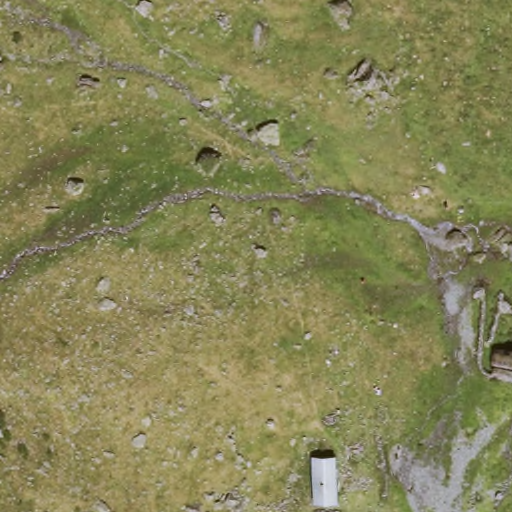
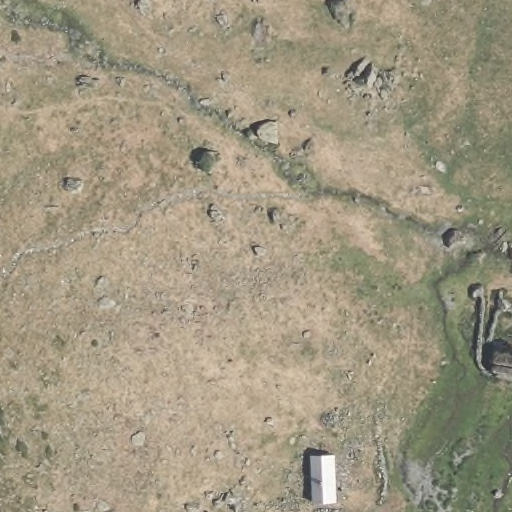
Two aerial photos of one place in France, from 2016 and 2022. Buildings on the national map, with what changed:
unchanged [(512,350),(512,377),(500,377),(502,349),(512,350)]
unchanged [(340,454),(340,484),(341,507),(316,507),(313,456),(340,454)]

